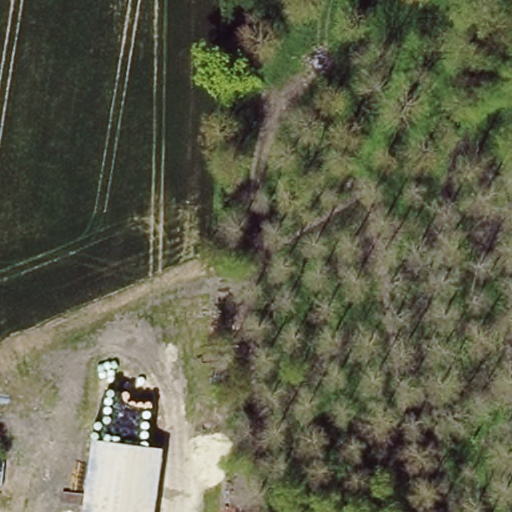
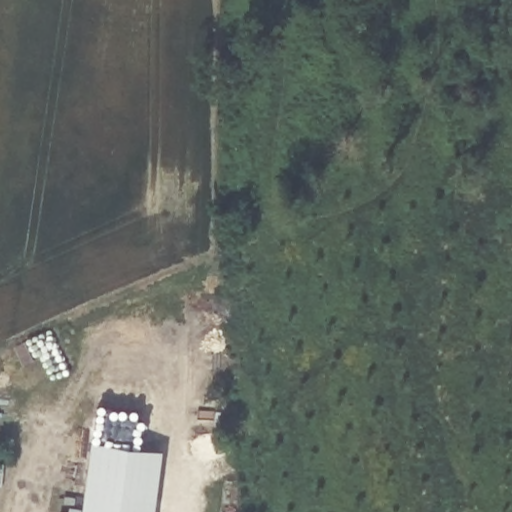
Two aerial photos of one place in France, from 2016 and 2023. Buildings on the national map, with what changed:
unchanged [(163,447),(154,512),(81,512),(90,439),(163,447)]

